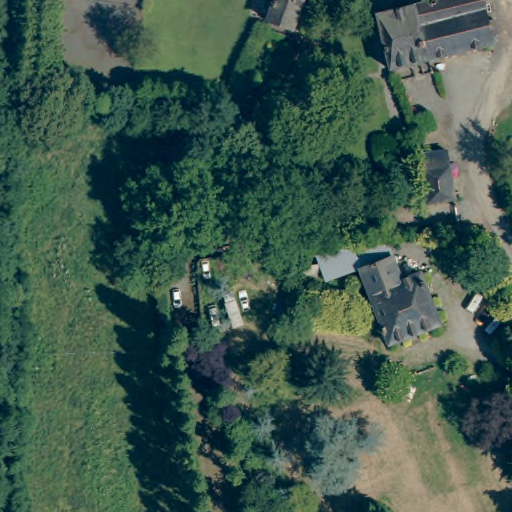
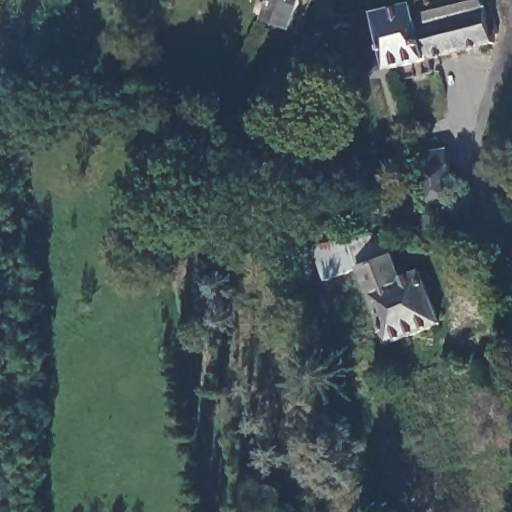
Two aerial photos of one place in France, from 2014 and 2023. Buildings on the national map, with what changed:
unchanged [(297,28),(273,20),(280,0),(306,0),(297,28)]
unchanged [(424,49),(412,2),(422,0),(479,0),(488,34),(424,49)]
unchanged [(377,13),(412,2),(424,49),(427,57),(391,68),(377,13)]
unchanged [(449,155),(458,203),(432,206),(423,158),(449,155)]
unchanged [(358,263),(388,253),(397,278),(419,271),(438,321),(385,340),(366,286),(331,299),(317,259),(352,246),(358,263)]

